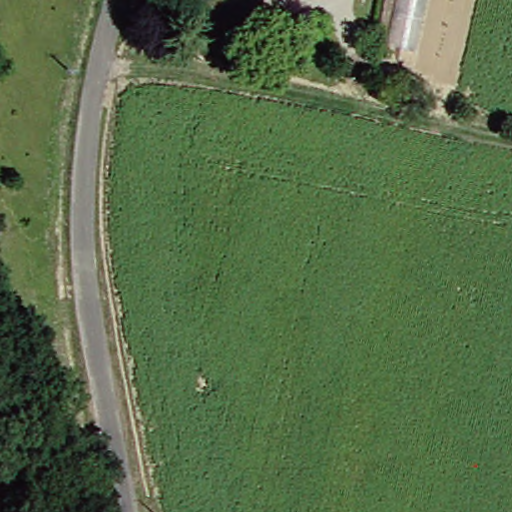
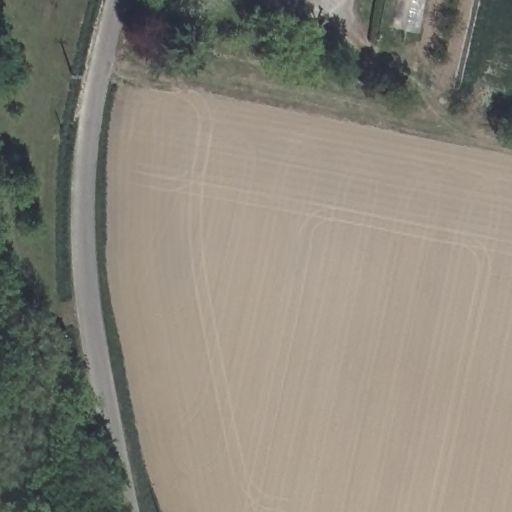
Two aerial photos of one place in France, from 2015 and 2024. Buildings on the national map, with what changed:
unchanged [(398,0),(425,0),(415,51),(390,45),(398,0)]

